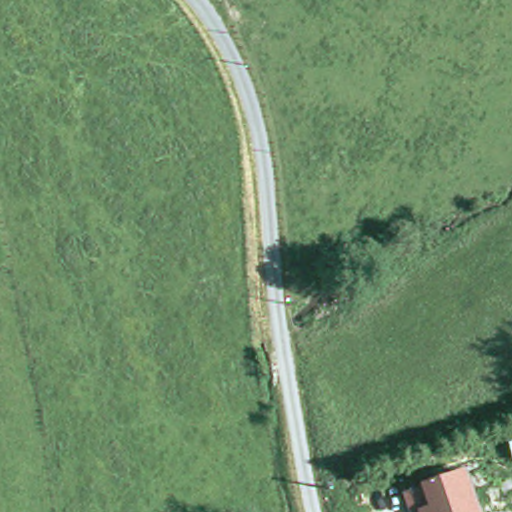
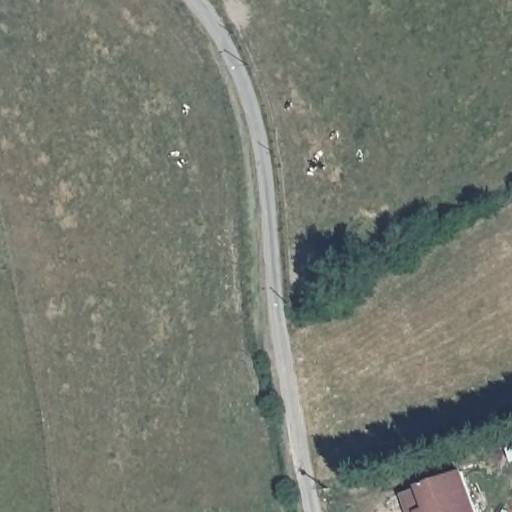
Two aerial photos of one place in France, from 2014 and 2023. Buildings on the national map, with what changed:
unchanged [(481,512),(406,512),(400,493),(466,470),(481,512)]

